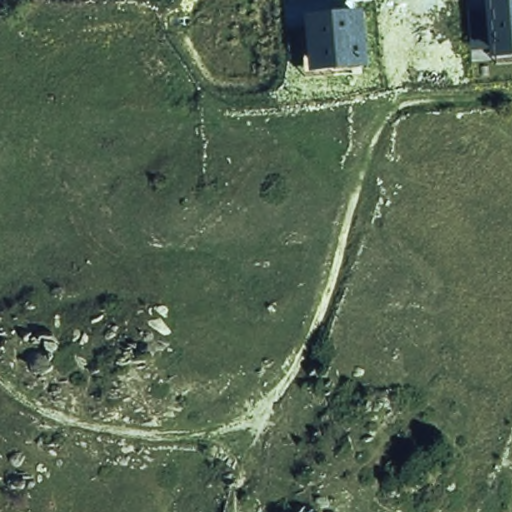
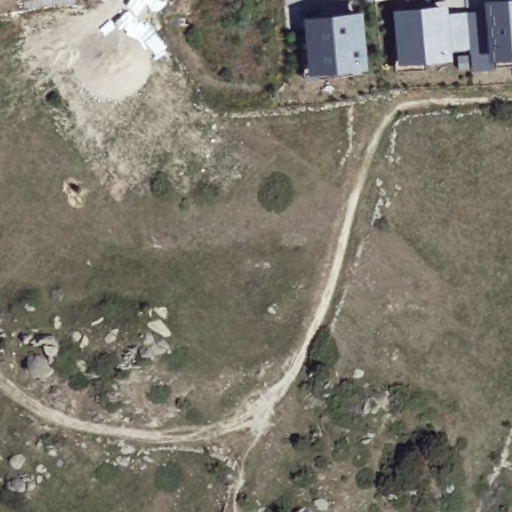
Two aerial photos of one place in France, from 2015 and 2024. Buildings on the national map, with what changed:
unchanged [(487,9),(487,2),(505,0),(512,0),(512,60),(493,62),(492,51),(487,9)]
new [(492,51),(470,52),(470,49),(452,50),(452,59),(399,64),(394,9),(447,4),(447,11),(466,10),(487,9),(492,51)]
unchanged [(306,19),(362,11),(369,68),(312,74),(306,19)]

